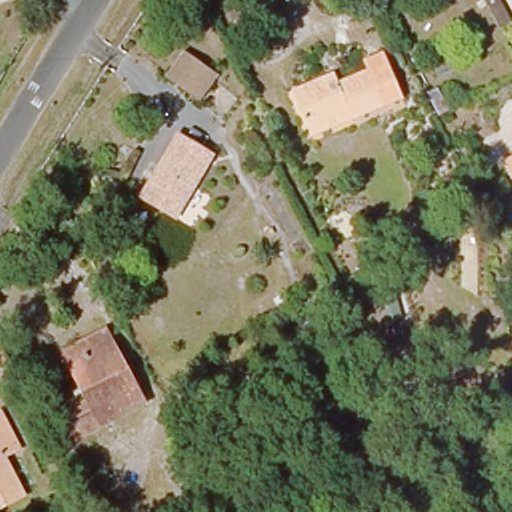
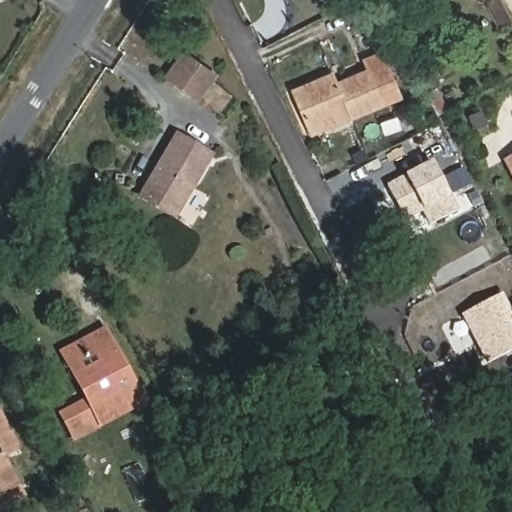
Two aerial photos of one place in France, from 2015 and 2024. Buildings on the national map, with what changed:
new [(496,24),(484,0),(500,0),(509,17),(496,24)]
unchanged [(375,108),(357,71),(370,67),(365,49),(387,42),(402,94),(403,98),(375,108)]
unchanged [(202,96),(170,77),(184,52),(216,72),(202,96)]
unchanged [(312,129),(309,120),(296,80),(304,77),(336,66),(339,76),(357,71),(375,108),(350,116),(327,124),(312,129)]
unchanged [(212,147),(178,208),(142,187),(177,126),(212,147)]
unchanged [(512,156),(512,177),(503,160),(512,156)]
new [(429,226),(422,212),(405,221),(387,186),(432,162),(457,211),(429,226)]
new [(499,296),(512,320),(512,351),(486,364),(461,315),(499,296)]
unchanged [(90,406),(67,357),(78,353),(94,346),(115,337),(149,410),(90,437),(76,443),(64,418),(78,412),(90,406)]
unchanged [(8,411),(26,449),(12,455),(30,493),(0,507),(0,414),(8,411)]

